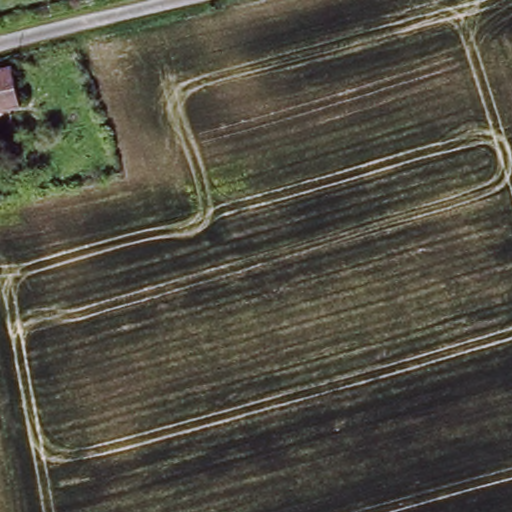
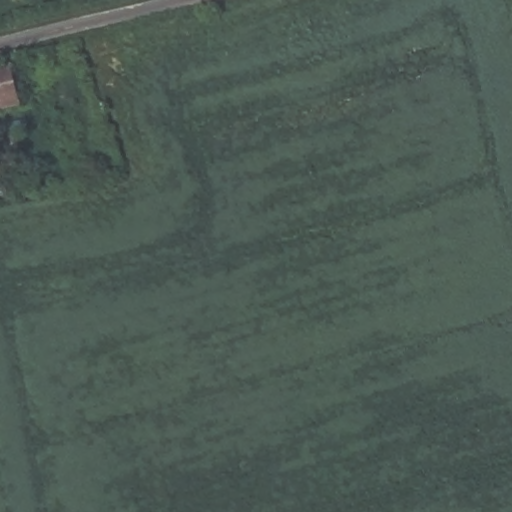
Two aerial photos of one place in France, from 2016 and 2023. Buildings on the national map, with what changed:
unchanged [(24,102),(0,107),(0,65),(14,62),(24,102)]
unchanged [(25,133),(26,148),(16,150),(13,135),(25,133)]

